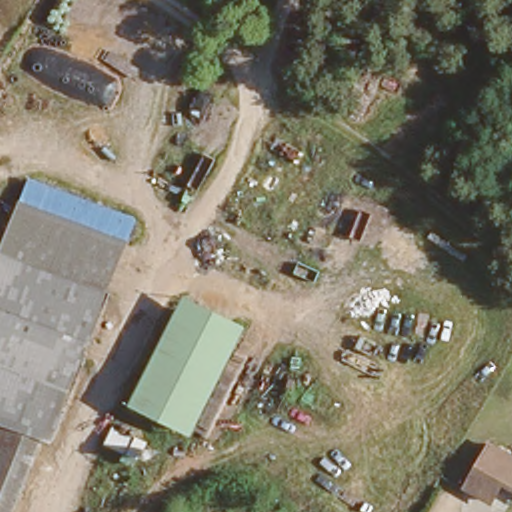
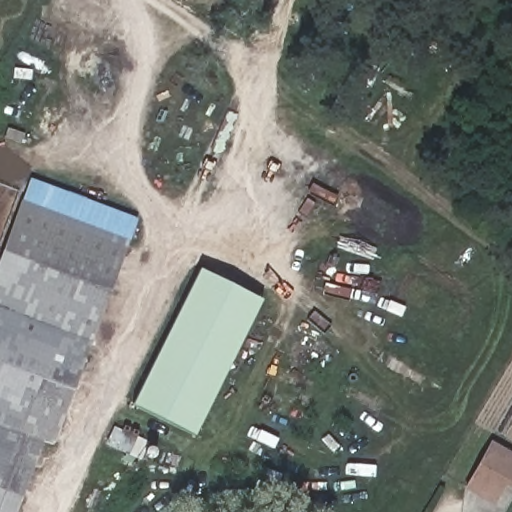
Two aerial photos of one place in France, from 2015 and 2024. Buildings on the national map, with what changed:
unchanged [(49,431),(0,413),(0,266),(11,236),(28,195),(34,198),(135,238),(69,411),(60,435),(49,431)]
new [(235,319),(186,296),(199,270),(262,300),(250,325),(235,319)]
unchanged [(250,325),(198,435),(164,420),(134,406),(186,296),(235,319),(250,325)]
unchanged [(0,413),(49,431),(16,512),(0,512),(0,413)]
unchanged [(475,486),(500,445),(512,452),(512,465),(493,497),(475,486)]
unchanged [(512,465),(512,481),(510,480),(497,500),(493,497),(512,465)]

